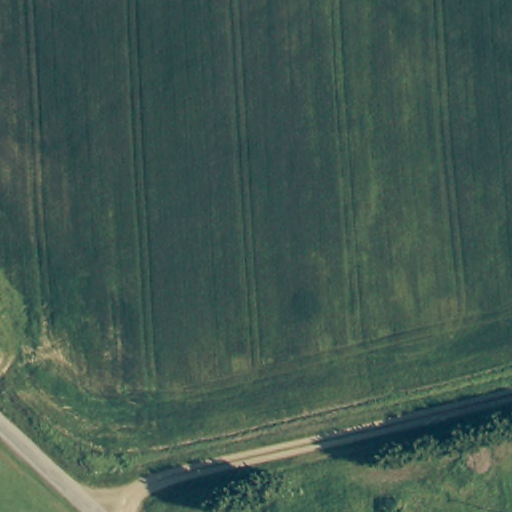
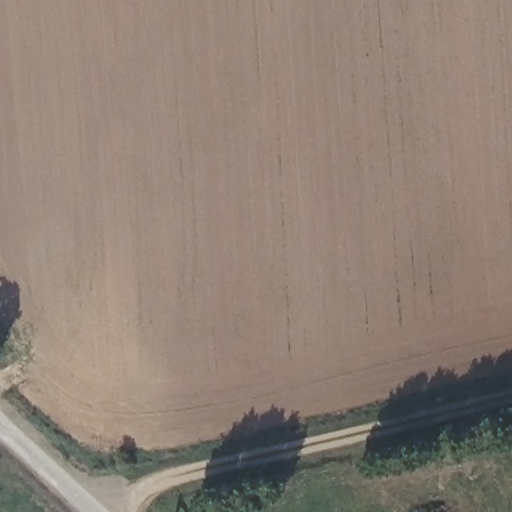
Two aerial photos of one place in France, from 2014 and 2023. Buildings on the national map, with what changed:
[]

